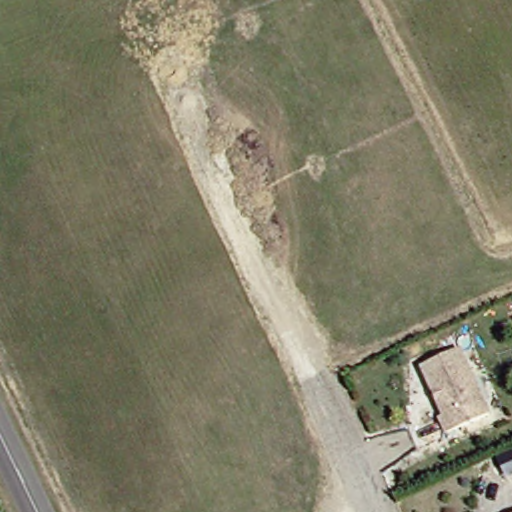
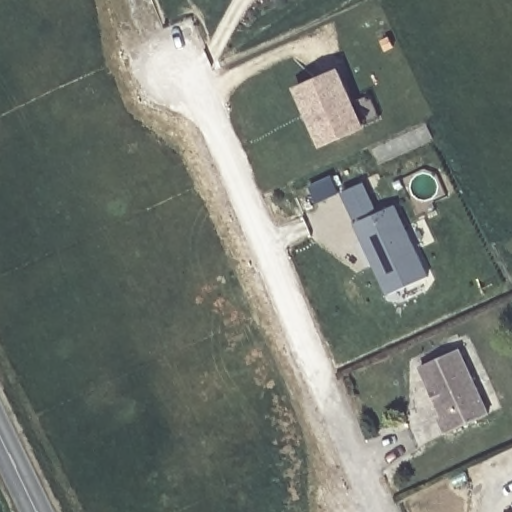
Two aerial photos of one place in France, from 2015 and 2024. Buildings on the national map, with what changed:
new [(340,70),(362,125),(319,143),(296,88),(340,70)]
new [(351,97),(368,89),(381,117),(362,124),(351,97)]
new [(426,279),(386,295),(356,225),(396,208),(426,279)]
unchanged [(416,358),(451,342),(481,408),(441,427),(433,411),(438,408),(425,379),(418,362),(416,358)]

